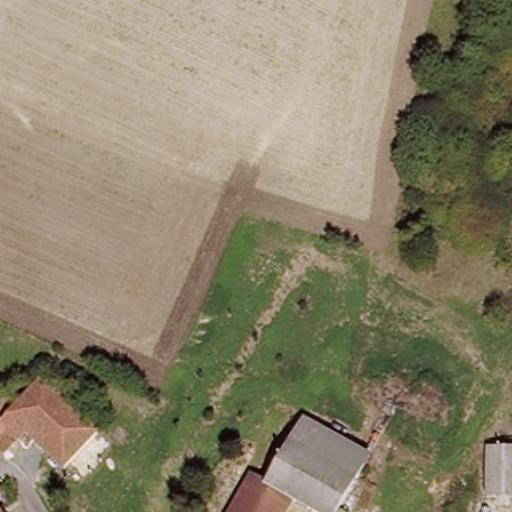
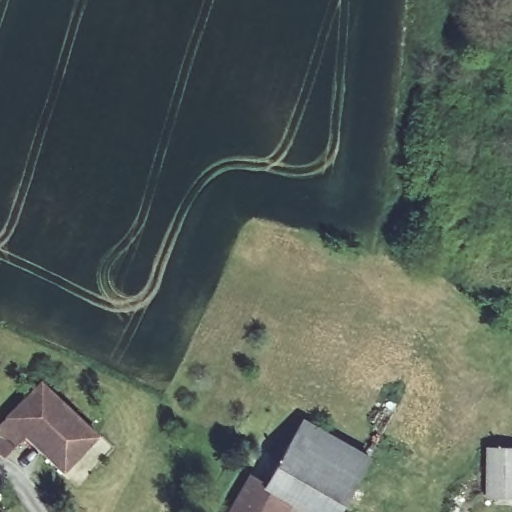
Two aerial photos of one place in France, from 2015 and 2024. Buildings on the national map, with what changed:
unchanged [(47,381),(107,427),(104,431),(89,450),(87,453),(64,435),(49,450),(42,442),(33,455),(1,438),(47,381)]
unchanged [(306,498),(280,483),(295,458),(318,417),(370,447),(387,457),(357,504),(354,508),(356,510),(360,512),(329,512),(306,498)]
unchanged [(484,491),(486,442),(512,444),(512,493),(484,491)]
unchanged [(298,512),(245,512),(256,492),(266,475),(280,483),(306,498),(298,512)]
unchanged [(0,506),(4,512),(0,512),(0,506)]

